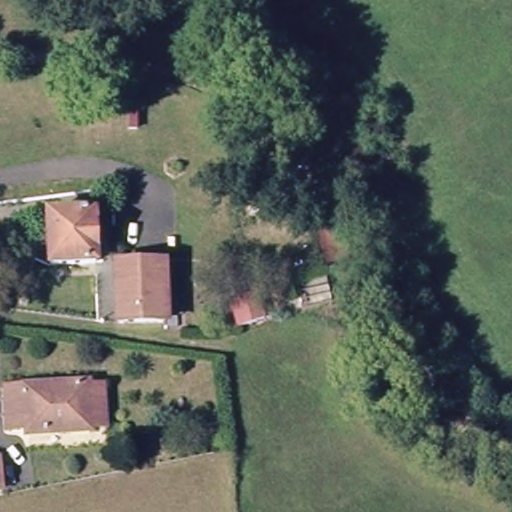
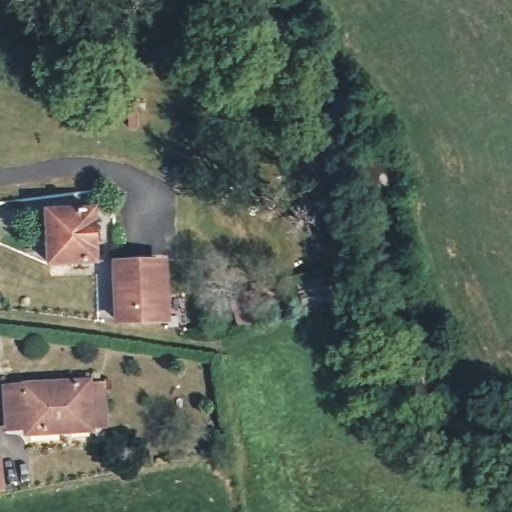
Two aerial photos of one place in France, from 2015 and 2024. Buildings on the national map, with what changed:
unchanged [(147,120),(145,145),(136,144),(139,120),(147,120)]
unchanged [(90,209),(89,258),(45,257),(45,208),(90,209)]
unchanged [(167,264),(164,314),(115,312),(116,262),(167,264)]
unchanged [(254,318),(227,327),(222,304),(247,297),(254,318)]
unchanged [(29,424),(10,424),(10,384),(89,382),(90,429),(29,429),(29,424)]

